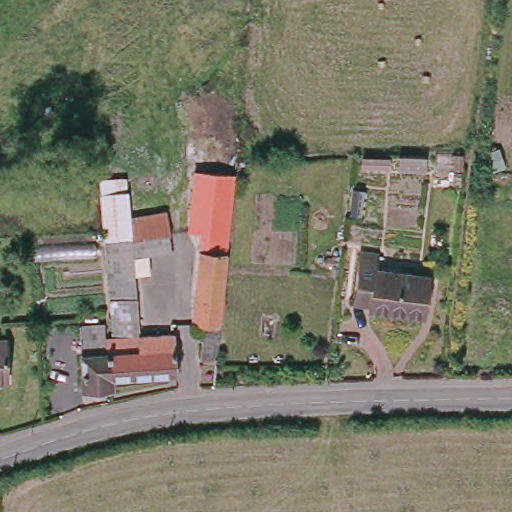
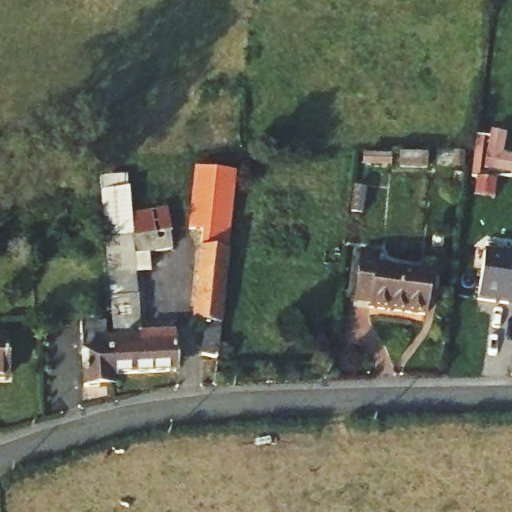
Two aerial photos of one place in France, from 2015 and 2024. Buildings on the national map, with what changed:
unchanged [(203,355),(207,320),(195,319),(202,226),(192,225),(195,165),(237,172),(220,355),(203,355)]
unchanged [(130,171),(132,206),(168,205),(172,250),(152,251),(152,274),(133,276),(130,234),(104,236),(99,175),(130,171)]
unchanged [(130,234),(133,276),(137,331),(112,332),(111,317),(104,239),(104,236),(130,234)]
new [(512,254),(512,307),(477,302),(485,250),(512,254)]
unchanged [(382,255),(380,270),(432,276),(429,316),(377,312),(377,302),(356,301),(361,253),(382,255)]
unchanged [(79,387),(76,350),(87,350),(85,327),(105,325),(105,334),(107,372),(109,385),(79,387)]
unchanged [(112,332),(137,331),(170,330),(172,367),(107,372),(105,334),(112,332)]
unchanged [(7,378),(0,379),(0,337),(4,336),(7,378)]

